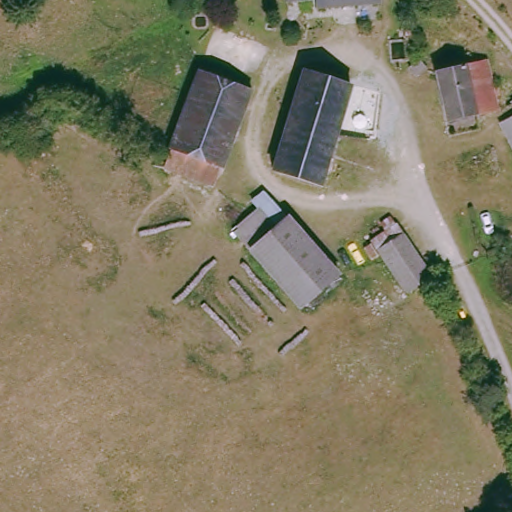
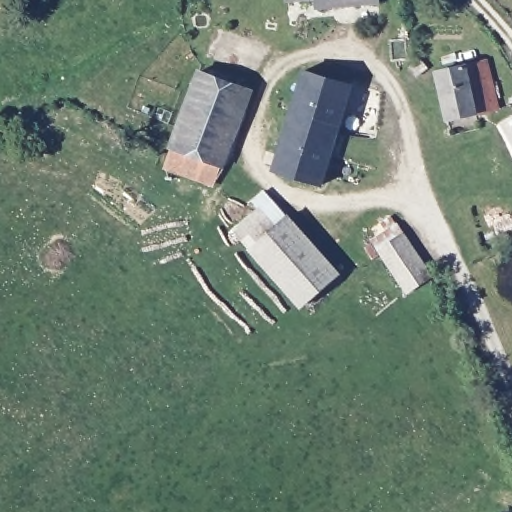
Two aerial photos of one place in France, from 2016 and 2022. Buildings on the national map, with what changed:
unchanged [(285,0),(301,0),(286,4),(285,0)]
unchanged [(312,0),(362,0),(316,12),(312,0)]
unchanged [(409,50),(393,56),(384,37),(404,30),(409,50)]
unchanged [(494,101),(446,115),(432,68),(481,56),(494,101)]
unchanged [(294,71),(348,82),(336,131),(284,120),(294,71)]
unchanged [(248,91),(226,160),(218,157),(210,180),(174,165),(165,157),(194,72),(248,91)]
unchanged [(499,119),(512,113),(512,144),(499,119)]
unchanged [(336,131),(324,183),(274,170),(284,120),(336,131)]
unchanged [(232,185),(249,198),(263,187),(281,215),(286,210),(339,270),(296,308),(246,250),(229,227),(238,220),(219,207),(232,185)]
unchanged [(367,239),(384,227),(378,220),(384,214),(394,220),(400,229),(432,277),(404,295),(367,239)]

